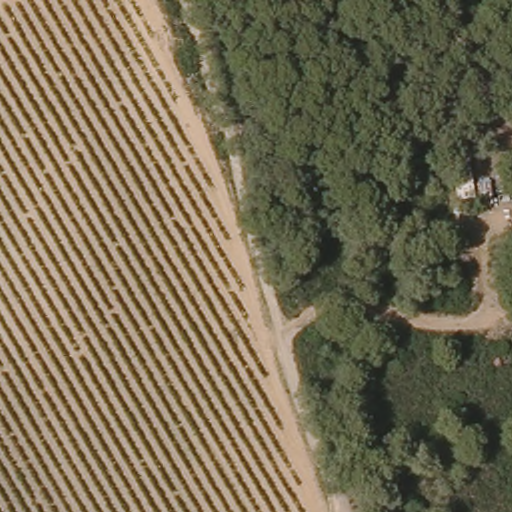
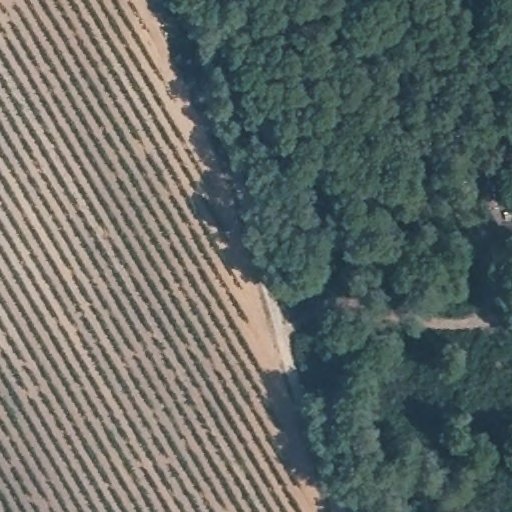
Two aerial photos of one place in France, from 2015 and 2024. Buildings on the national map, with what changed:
unchanged [(469,147),(472,202),(454,202),(451,151),(469,147)]
unchanged [(493,184),(493,205),(480,205),(478,184),(493,184)]

